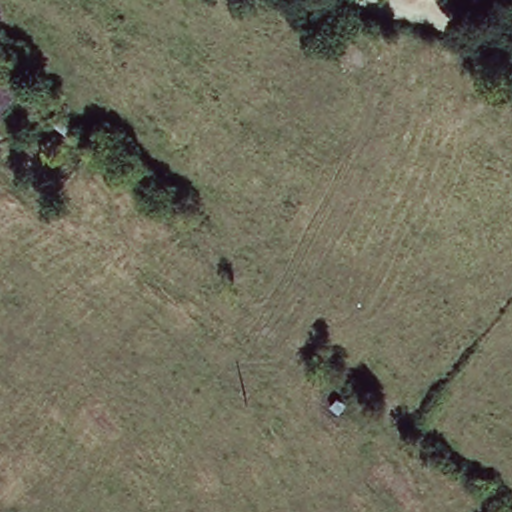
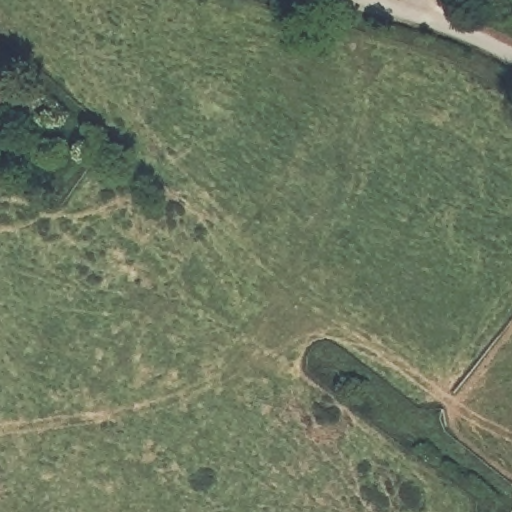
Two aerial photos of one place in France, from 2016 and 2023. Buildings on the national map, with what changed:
unchanged [(0,125),(0,60),(30,77),(0,125)]

